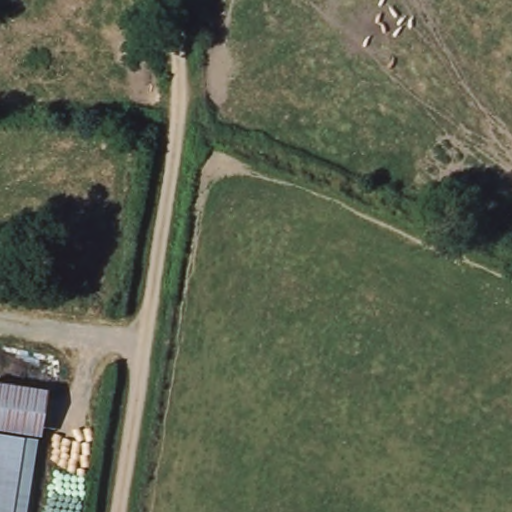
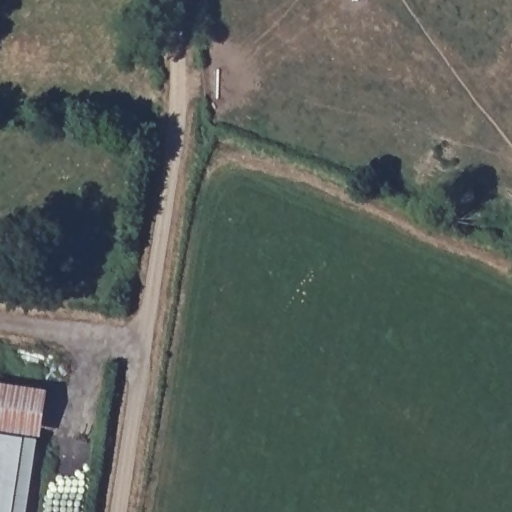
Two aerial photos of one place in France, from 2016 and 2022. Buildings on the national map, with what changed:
unchanged [(43,438),(0,431),(0,384),(50,392),(43,438)]
unchanged [(29,512),(0,512),(0,436),(40,442),(29,512)]

